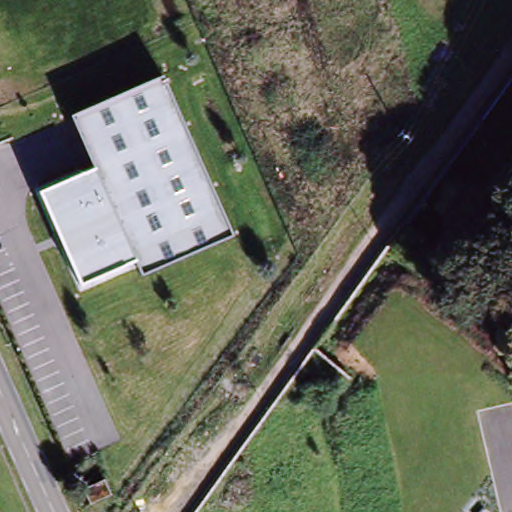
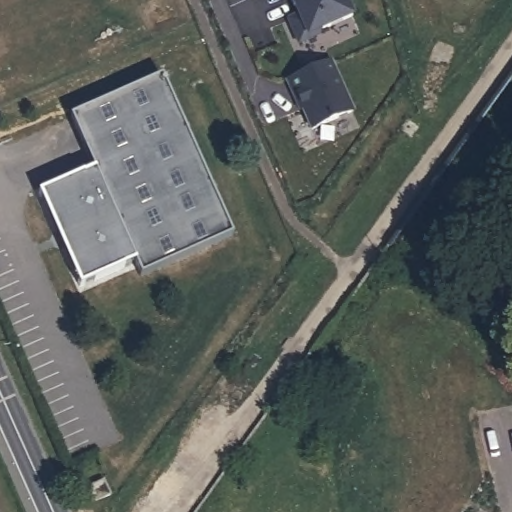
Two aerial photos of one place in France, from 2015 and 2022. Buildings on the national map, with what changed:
new [(308,12),(306,7),(302,9),(298,2),(303,0),(342,0),(352,21),(330,31),(326,38),(306,47),(295,23),(306,18),(308,12)]
new [(335,63),(356,113),(317,131),(301,96),(300,97),(292,82),(335,63)]
unchanged [(35,191),(91,168),(69,115),(162,77),(230,236),(140,276),(133,264),(75,285),(35,191)]

